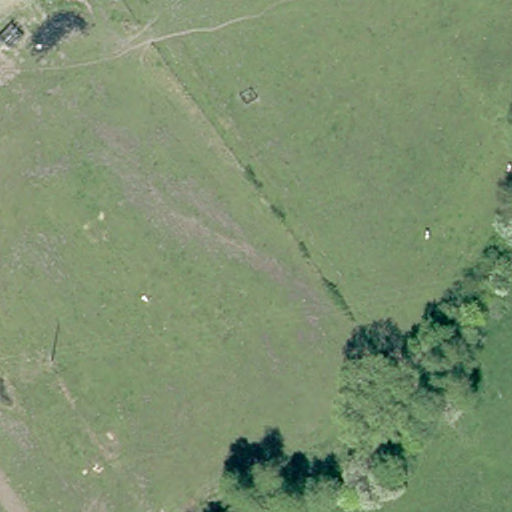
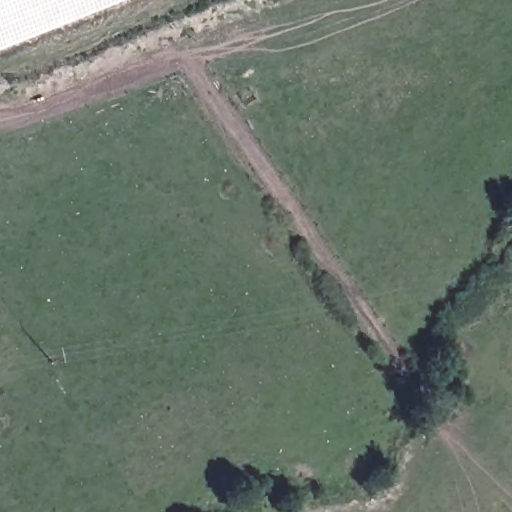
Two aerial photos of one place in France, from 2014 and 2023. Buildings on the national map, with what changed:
new [(0,50),(0,0),(123,0),(0,50)]

